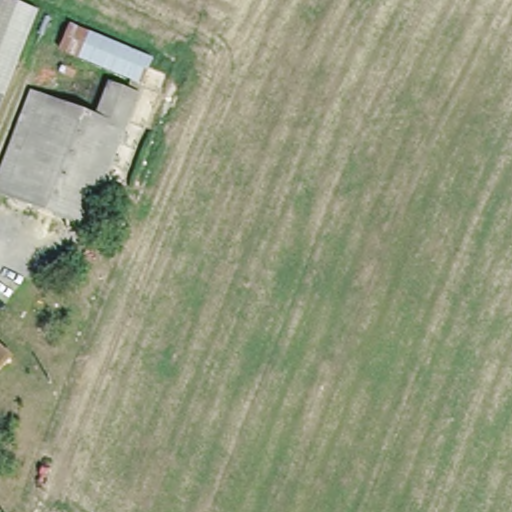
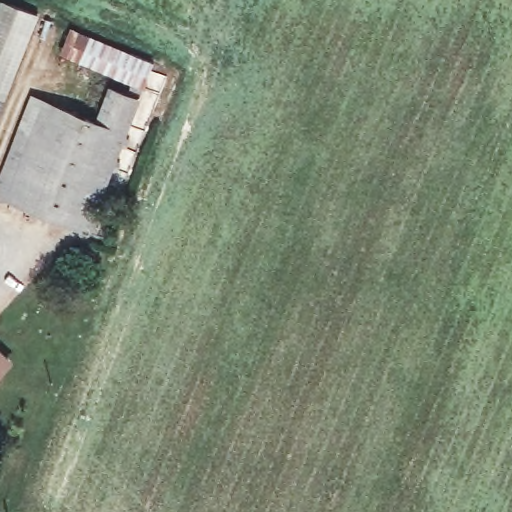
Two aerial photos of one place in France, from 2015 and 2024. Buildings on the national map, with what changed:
unchanged [(7,0),(37,13),(0,105),(0,3),(1,0),(7,0)]
unchanged [(65,21),(146,55),(136,81),(55,49),(65,21)]
unchanged [(26,89),(92,112),(103,79),(136,91),(84,227),(0,192),(0,156),(26,89)]
unchanged [(13,353),(0,367),(0,341),(13,353)]

